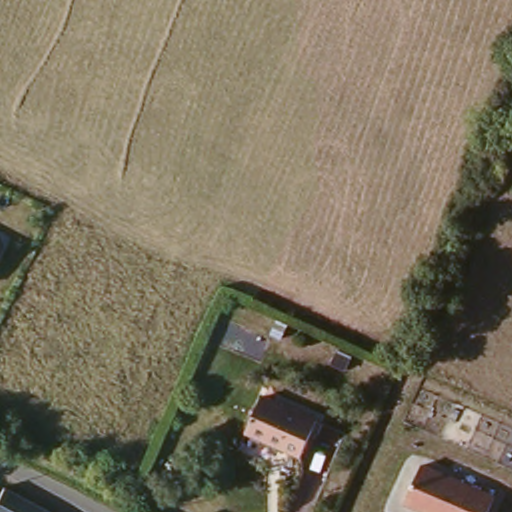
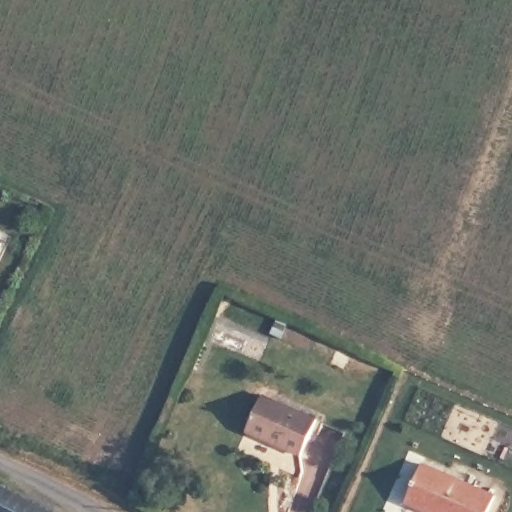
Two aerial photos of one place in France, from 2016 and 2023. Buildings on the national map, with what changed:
unchanged [(0,252),(0,240),(5,242),(0,252)]
unchanged [(321,419),(305,455),(251,431),(267,395),(321,419)]
unchanged [(487,512),(437,512),(408,501),(422,462),(494,492),(487,512)]
unchanged [(0,512),(0,490),(2,486),(48,512),(0,512)]

